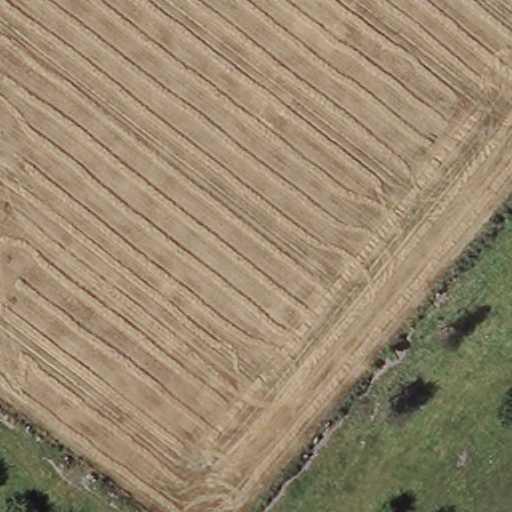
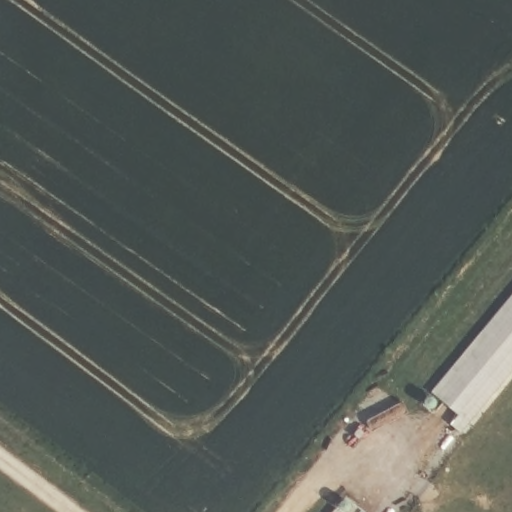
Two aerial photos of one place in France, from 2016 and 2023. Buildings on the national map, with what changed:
new [(512,304),(512,378),(472,422),(435,390),(512,304)]
new [(343,512),(339,512),(340,510),(343,512)]

